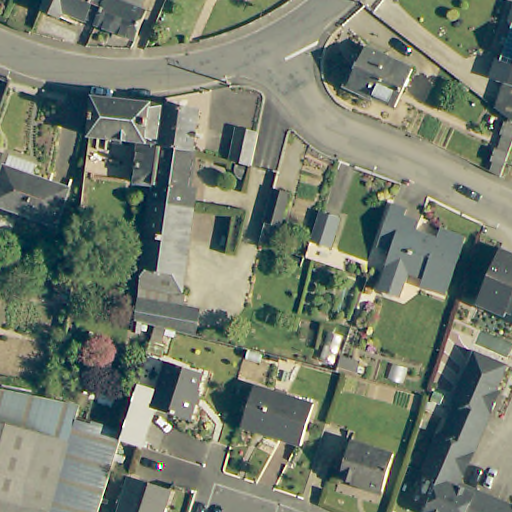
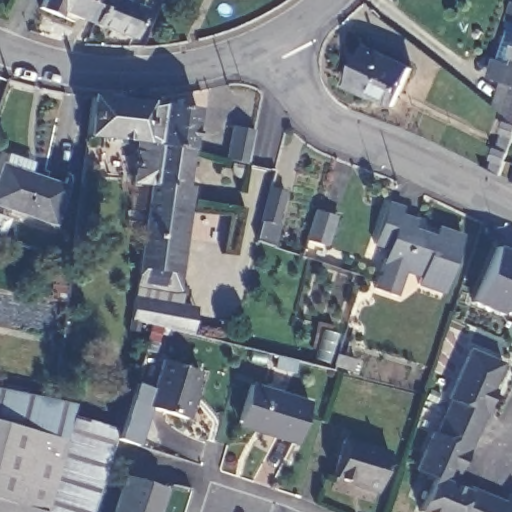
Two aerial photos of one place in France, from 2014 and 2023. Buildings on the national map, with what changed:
unchanged [(93,18),(82,13),(80,18),(59,9),(57,15),(38,7),(41,0),(103,0),(95,23),(93,24),(91,23),(93,18)]
unchanged [(147,30),(135,25),(129,39),(93,24),(95,23),(103,0),(121,0),(120,3),(134,9),(138,0),(145,0),(157,5),(147,30)]
unchanged [(488,74),(494,55),(499,56),(511,19),(507,18),(512,3),(512,118),(491,103),(500,77),(488,74)]
unchanged [(395,105),(347,83),(364,48),(412,71),(395,105)]
unchanged [(90,97),(161,106),(155,146),(150,185),(130,182),(135,139),(85,134),(90,97)]
unchanged [(155,146),(161,106),(195,110),(189,151),(155,146)]
unchanged [(512,119),(512,129),(497,173),(487,168),(505,116),(512,119)]
unchanged [(226,164),(232,130),(254,135),(248,169),(226,164)]
unchanged [(150,185),(155,146),(189,151),(184,187),(193,189),(191,205),(182,204),(148,198),(150,185)]
unchanged [(1,168),(6,155),(30,164),(27,173),(64,186),(50,225),(0,207),(0,168),(1,168)]
unchanged [(285,194),(278,227),(282,228),(275,252),(258,246),(270,191),(285,194)]
unchanged [(143,232),(148,198),(182,204),(176,237),(143,232)]
unchanged [(384,263),(389,247),(374,242),(388,202),(403,207),(401,215),(415,219),(412,228),(433,234),(436,225),(462,233),(446,289),(420,282),(423,274),(406,269),(400,293),(378,285),(384,263)]
unchanged [(327,250),(306,244),(315,215),(337,222),(327,250)]
unchanged [(144,323),(131,320),(134,299),(135,288),(138,267),(143,232),(176,237),(185,238),(180,272),(176,295),(181,296),(179,307),(196,309),(192,334),(150,325),(144,323)]
unchanged [(497,247),(512,254),(512,322),(472,305),(497,247)]
unchanged [(452,487),(432,479),(416,472),(432,433),(438,436),(452,402),(449,401),(469,351),(503,364),(483,414),(488,416),(473,450),(468,449),(453,485),(452,487)]
unchanged [(123,421),(132,394),(137,378),(156,384),(165,355),(203,366),(198,383),(199,383),(190,412),(154,401),(142,440),(120,433),(123,421)]
unchanged [(77,399),(75,409),(48,512),(0,512),(0,383),(77,399)]
unchanged [(240,423),(251,387),(309,404),(297,444),(263,434),(238,427),(240,423)]
unchanged [(123,421),(120,433),(94,512),(48,512),(75,409),(123,421)]
unchanged [(338,479),(349,443),(390,454),(380,491),(338,479)]
unchanged [(432,479),(452,487),(453,485),(471,493),(473,488),(507,503),(505,508),(512,511),(512,512),(423,512),(419,510),(432,479)]
unchanged [(166,491),(160,512),(115,512),(126,480),(166,491)]

